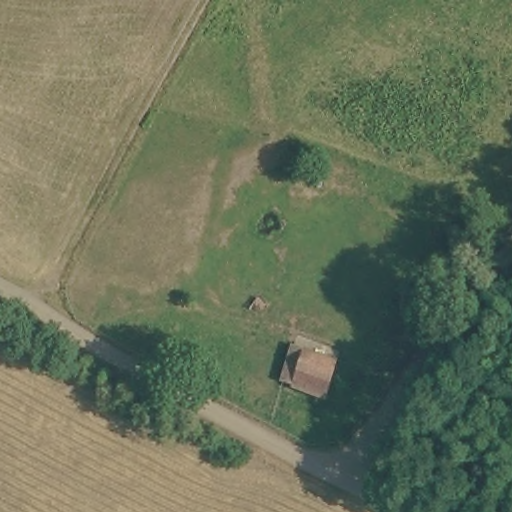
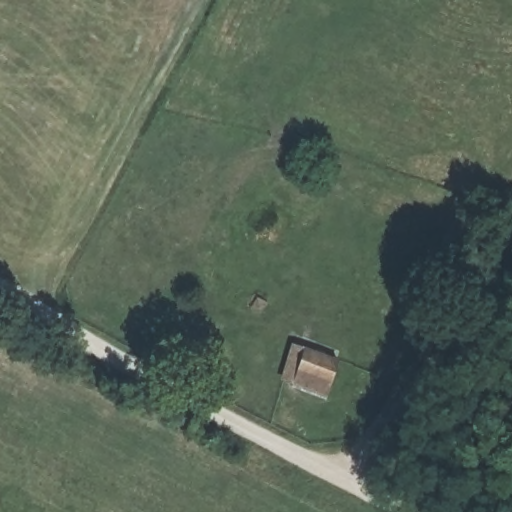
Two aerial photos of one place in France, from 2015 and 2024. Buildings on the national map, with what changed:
unchanged [(283,382),(295,345),(339,358),(326,398),(283,382)]

